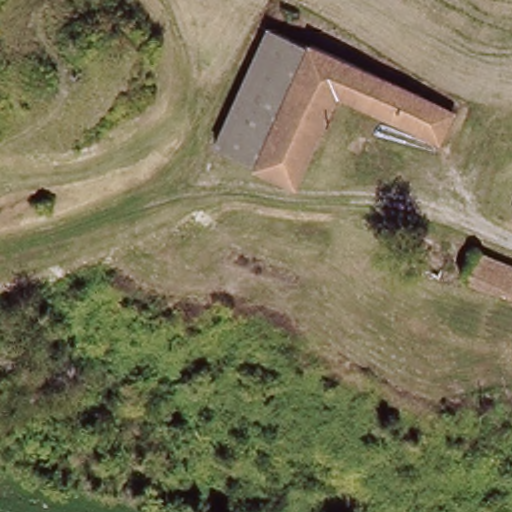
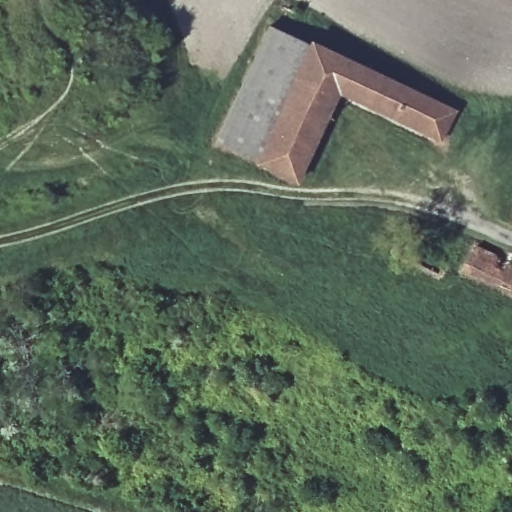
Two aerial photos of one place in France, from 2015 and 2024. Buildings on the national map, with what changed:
unchanged [(269,25),(306,43),(254,159),(213,140),(269,25)]
unchanged [(306,43),(450,113),(440,137),(340,90),(294,179),(254,159),(306,43)]
unchanged [(512,223),(511,222),(512,219),(512,223)]
unchanged [(512,261),(512,292),(465,272),(475,246),(512,261)]

